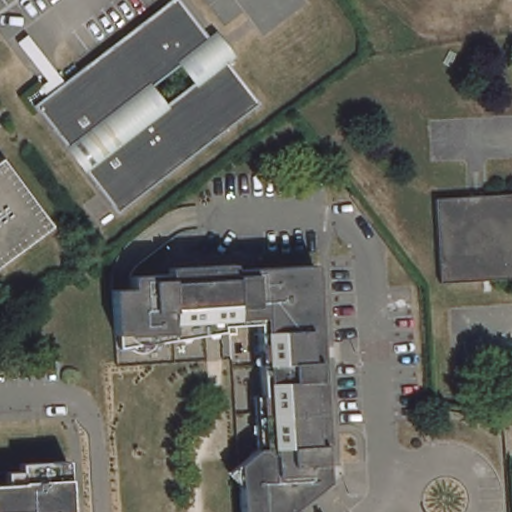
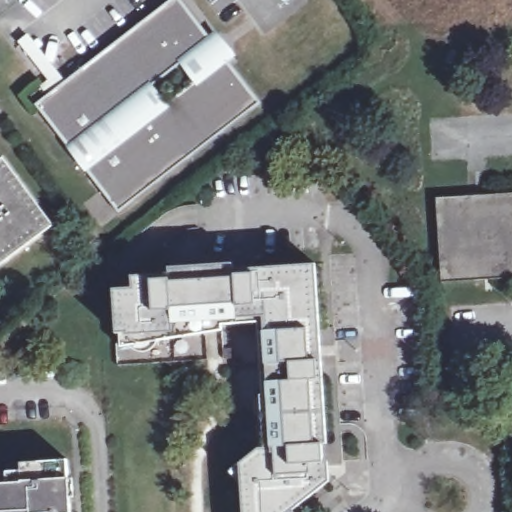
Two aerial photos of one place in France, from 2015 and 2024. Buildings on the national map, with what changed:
unchanged [(220,57),(223,60),(254,103),(112,209),(31,101),(41,94),(64,77),(166,0),(177,0),(204,36),(207,39),(203,42),(178,61),(147,84),(160,102),(192,79),(216,60),(220,57)]
unchanged [(207,39),(204,36),(212,31),(212,30),(230,55),(223,60),(220,57),(216,60),(192,79),(178,61),(203,42),(207,39)]
unchanged [(64,77),(41,94),(36,88),(43,80),(14,42),(28,31),(64,77)]
unchanged [(3,156),(53,223),(21,247),(0,263),(0,157),(3,156)]
unchanged [(438,198),(512,193),(512,277),(443,281),(438,198)]
unchanged [(240,463),(251,454),(259,447),(256,395),(263,395),(259,323),(238,324),(222,325),(219,277),(234,276),(234,269),(308,264),(316,264),(318,295),(310,296),(314,359),(322,359),(328,444),(323,444),(326,485),(294,510),(291,512),(243,512),(241,480),(240,463)]
unchanged [(122,347),(121,334),(117,334),(114,288),(133,287),(132,275),(203,271),(207,333),(122,347)]
unchanged [(7,478),(7,466),(21,465),(21,457),(68,455),(70,474),(74,474),(75,492),(71,492),(72,509),(65,509),(65,512),(0,512),(0,478),(7,478)]

